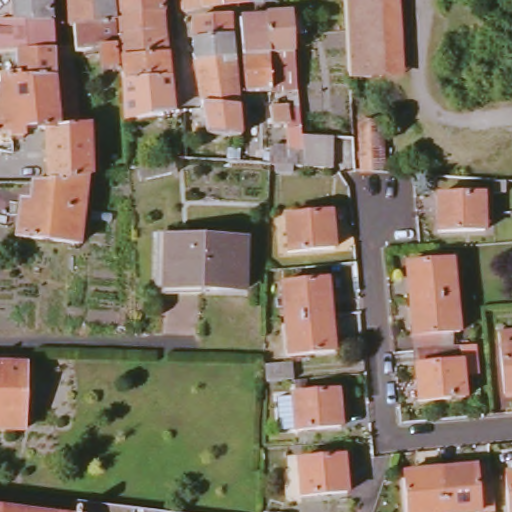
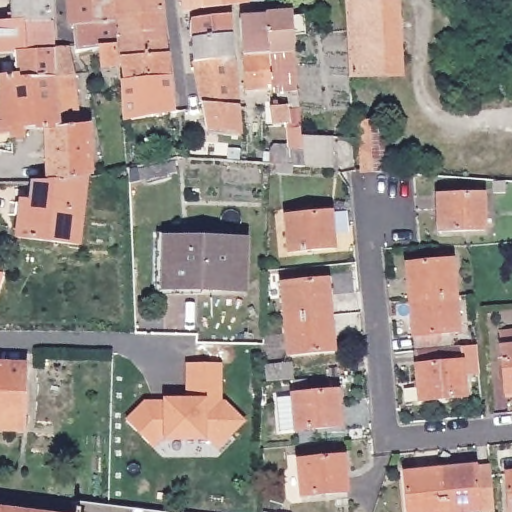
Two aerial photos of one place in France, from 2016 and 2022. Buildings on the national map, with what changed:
unchanged [(55,52),(21,54),(1,55),(1,23),(18,22),(16,0),(53,0),(55,52)]
unchanged [(106,71),(103,48),(81,52),(80,47),(79,27),(75,27),(74,0),(116,0),(118,21),(120,45),(122,69),(106,71)]
unchanged [(128,81),(126,57),(125,44),(125,35),(122,0),(166,0),(168,31),(171,53),(173,77),(128,81)]
unchanged [(181,0),(250,0),(250,2),(225,5),(202,8),(183,11),(181,0)]
unchanged [(345,0),(398,0),(400,59),(401,77),(383,78),(350,79),(348,64),(345,0)]
unchanged [(270,91),(270,89),(245,92),(243,58),(240,22),(265,20),(265,16),(280,14),(291,14),(291,19),(303,18),(305,35),(292,36),(293,53),(296,88),(270,91)]
unchanged [(203,104),(201,95),(198,77),(195,61),(194,40),(191,20),(232,15),(233,36),(238,106),(203,104)]
unchanged [(30,137),(17,139),(13,139),(12,134),(0,135),(0,80),(23,79),(21,54),(55,52),(59,51),(59,48),(72,47),(79,76),(81,94),(85,126),(95,125),(96,177),(91,178),(86,179),(79,180),(72,181),(60,181),(52,182),(50,130),(30,129),(30,137)]
unchanged [(177,113),(130,119),(128,81),(173,77),(177,113)]
unchanged [(298,108),(290,109),(288,93),(296,91),(298,108)]
unchanged [(203,104),(238,106),(240,114),(241,136),(208,134),(204,109),(203,104)]
unchanged [(271,108),(283,106),(287,106),(288,114),(292,114),(293,119),(300,119),(301,129),(289,130),(288,125),(273,126),(271,108)]
unchanged [(361,171),(359,125),(382,123),(386,170),(361,171)]
unchanged [(305,167),(302,137),(332,138),(333,169),(305,167)]
unchanged [(52,182),(60,181),(72,181),(79,180),(86,179),(91,178),(83,245),(23,238),(26,202),(37,203),(39,183),(52,182)]
unchanged [(438,198),(484,196),(484,231),(440,232),(438,198)]
unchanged [(285,218),(331,214),(333,248),(288,251),(285,218)]
unchanged [(161,288),(162,238),(250,240),(250,290),(161,288)]
unchanged [(411,306),(408,271),(452,267),(455,302),(411,306)]
unchanged [(291,316),(288,280),(332,277),(336,311),(291,316)]
unchanged [(416,357),(411,306),(455,302),(460,353),(416,357)]
unchanged [(336,311),(340,346),(294,351),(291,316),(336,311)]
unchanged [(506,394),(501,348),(500,332),(512,331),(512,393),(506,394)]
unchanged [(460,353),(477,351),(480,378),(463,380),(465,403),(420,407),(416,357),(460,353)]
unchanged [(268,379),(269,362),(279,361),(297,359),(297,366),(298,377),(268,379)]
new [(222,363),(222,401),(225,401),(246,421),(218,450),(210,441),(207,441),(164,441),(160,441),(154,448),(125,420),(143,401),(162,399),(186,399),(185,363),(222,363)]
unchanged [(0,365),(25,366),(23,431),(0,430),(0,365)]
unchanged [(292,397),(338,392),(341,427),(296,431),(292,397)]
unchanged [(298,462),(344,458),(347,492),(301,497),(298,462)]
unchanged [(489,512),(445,512),(441,471),(490,466),(495,512),(489,512)]
unchanged [(410,512),(406,474),(441,471),(445,512),(410,512)]
unchanged [(511,512),(507,475),(512,474),(512,512),(511,512)]
unchanged [(30,512),(33,512),(0,512),(0,500),(30,504),(30,512)]
unchanged [(133,512),(76,512),(76,504),(133,512)]

